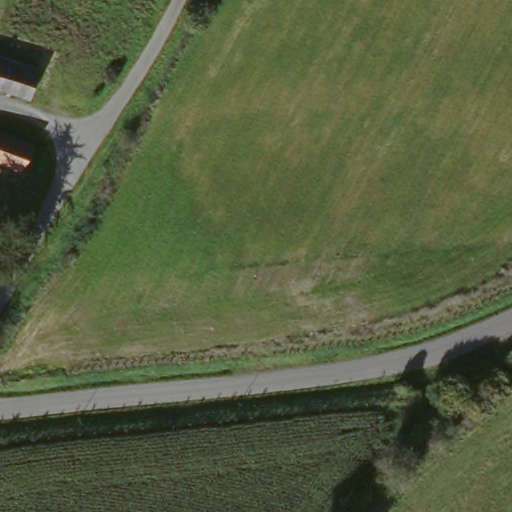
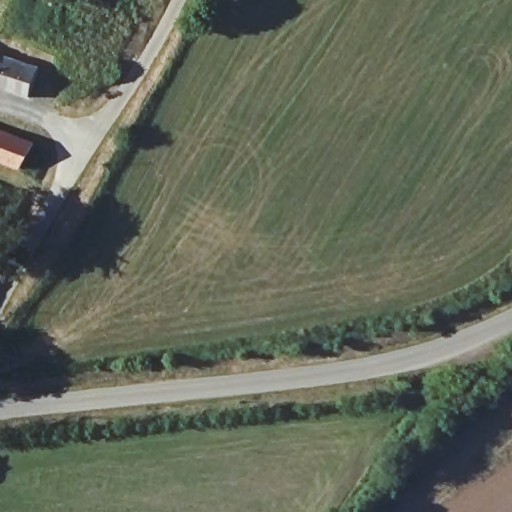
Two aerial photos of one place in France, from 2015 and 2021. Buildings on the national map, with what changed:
unchanged [(0,60),(33,77),(19,104),(0,96),(0,60)]
unchanged [(32,148),(18,172),(0,163),(0,130),(28,145),(32,148)]

